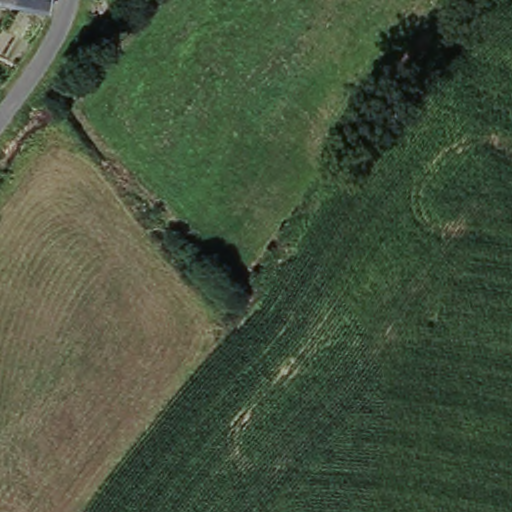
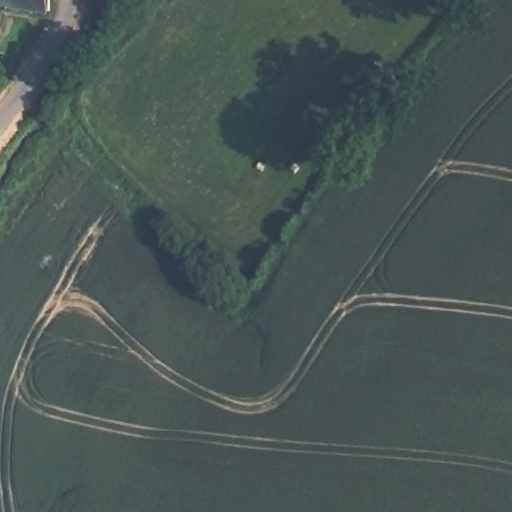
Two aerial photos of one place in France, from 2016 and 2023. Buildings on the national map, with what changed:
unchanged [(34,8),(33,11),(0,5),(0,0),(50,0),(49,11),(34,8)]

